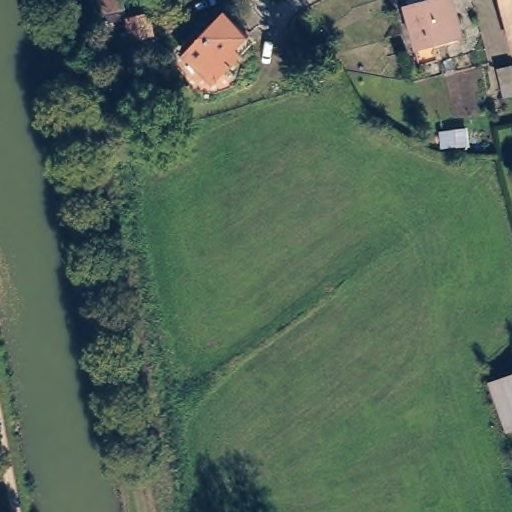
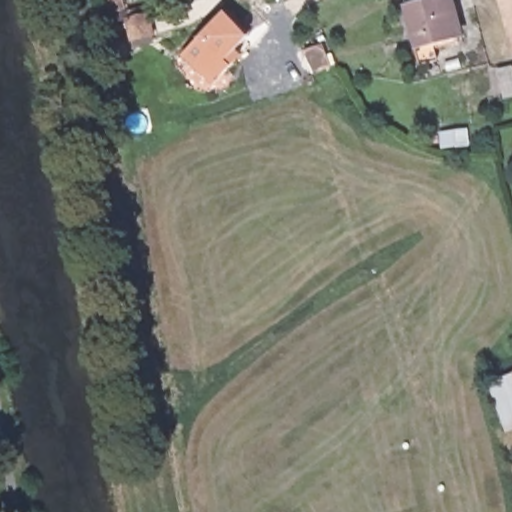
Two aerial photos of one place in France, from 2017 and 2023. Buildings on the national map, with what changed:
unchanged [(419,54),(409,14),(414,13),(411,0),(432,0),(435,8),(451,4),(456,21),(460,20),(462,31),(455,34),(457,45),(438,50),(442,68),(424,72),(419,54)]
unchanged [(512,0),(512,30),(505,0),(512,0)]
unchanged [(247,39),(233,53),(239,59),(211,87),(180,57),(222,14),(247,39)]
unchanged [(141,18),(146,35),(127,40),(122,21),(141,18)]
unchanged [(454,132),(455,149),(442,149),(440,133),(454,132)]
unchanged [(506,436),(489,386),(512,378),(512,433),(506,436)]

